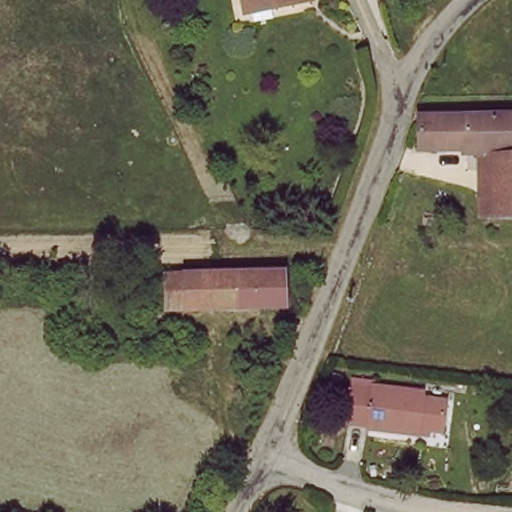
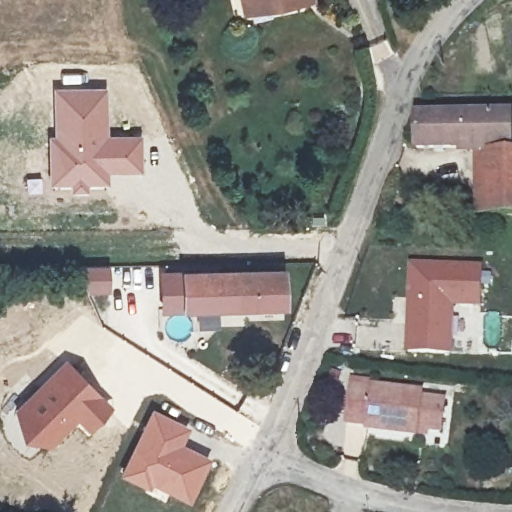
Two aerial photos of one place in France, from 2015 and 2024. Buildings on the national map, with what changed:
unchanged [(233,0),(248,0),(233,3),(233,0)]
unchanged [(261,0),(294,0),(263,6),(261,0)]
new [(52,134),(52,87),(109,87),(109,134),(143,135),(143,173),(108,173),(109,185),(88,187),(88,192),(70,192),(69,186),(49,187),(47,134),(52,134)]
unchanged [(408,147),(407,112),(503,110),(505,147),(512,147),(512,213),(480,215),(478,147),(408,147)]
new [(484,265),(481,307),(454,305),(449,356),(402,352),(409,263),(484,265)]
new [(82,265),(112,265),(111,295),(82,293),(82,265)]
unchanged [(276,305),(162,307),(160,283),(173,282),(172,271),(276,268),(276,305)]
new [(66,357),(112,406),(85,431),(77,422),(47,447),(18,442),(10,411),(66,357)]
unchanged [(422,392),(421,402),(443,405),(439,432),(416,430),(416,437),(366,431),(367,425),(347,423),(353,384),(422,392)]
new [(152,407),(189,426),(182,443),(210,457),(188,503),(152,487),(149,490),(119,476),(152,407)]

